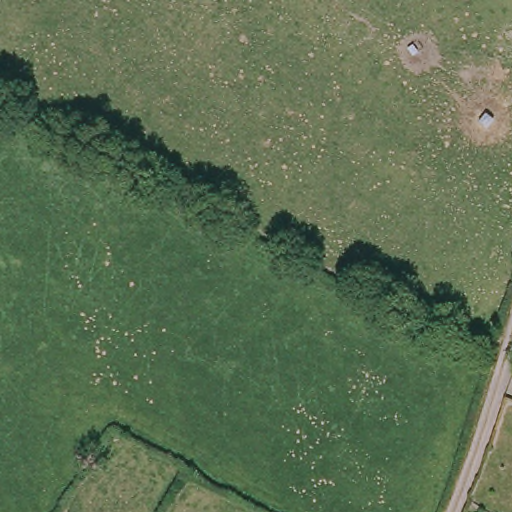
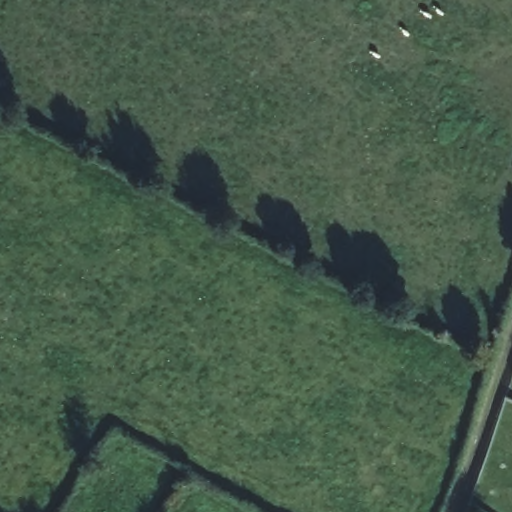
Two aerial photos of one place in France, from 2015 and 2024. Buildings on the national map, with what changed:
[]

